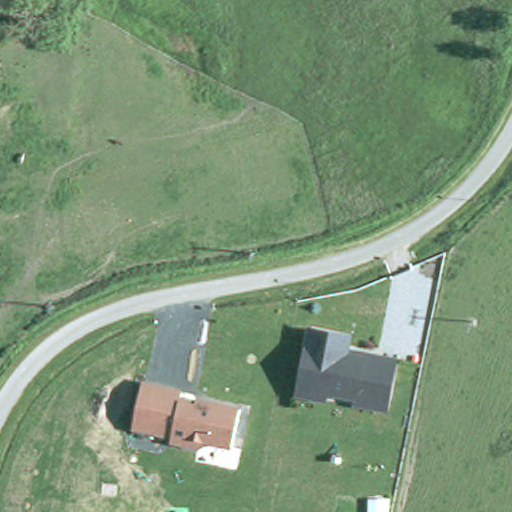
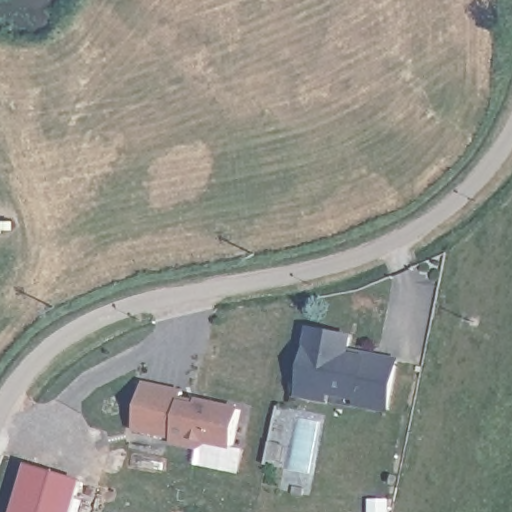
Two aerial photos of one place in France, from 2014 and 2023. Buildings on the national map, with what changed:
unchanged [(300,396),(302,383),(312,330),(352,337),(349,352),(365,355),(398,362),(388,410),(355,404),(357,398),(330,392),(329,401),(300,396)]
unchanged [(239,442),(213,436),(205,442),(177,436),(179,431),(141,423),(140,423),(149,379),(150,380),(190,387),(187,397),(202,400),(203,396),(247,405),(239,442)]
new [(13,512),(27,464),(82,480),(73,512),(13,512)]

